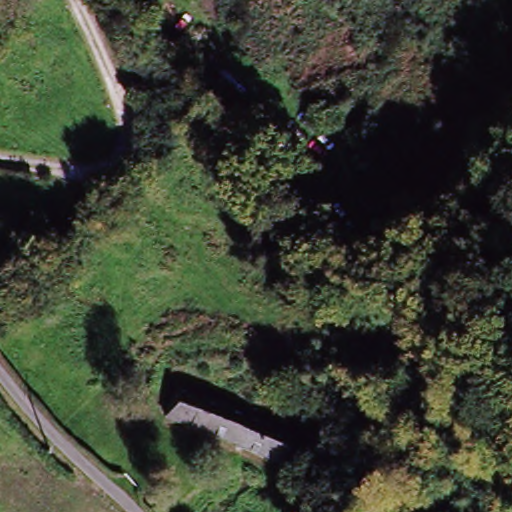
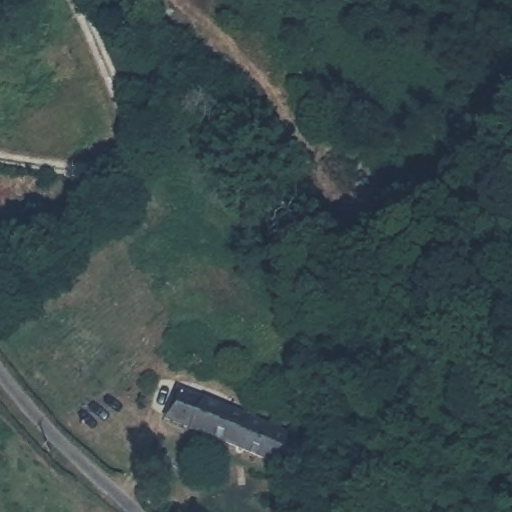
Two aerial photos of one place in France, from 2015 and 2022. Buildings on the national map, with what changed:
unchanged [(288,473),(172,425),(184,392),(298,442),(301,442),(288,473)]

